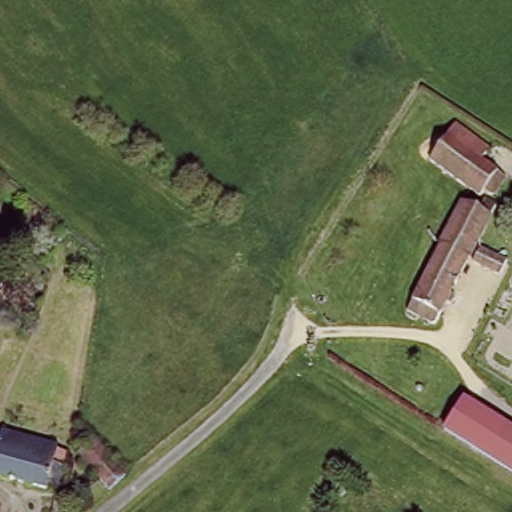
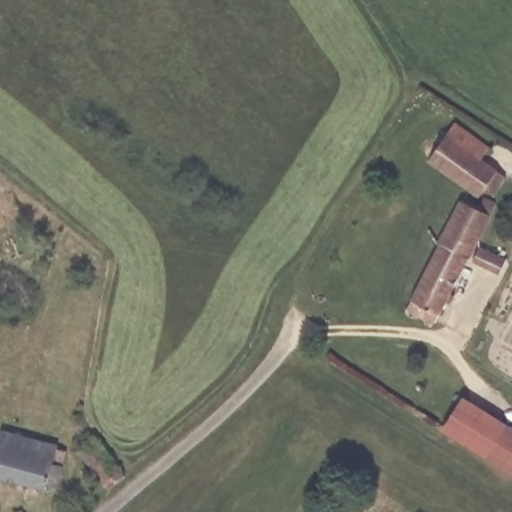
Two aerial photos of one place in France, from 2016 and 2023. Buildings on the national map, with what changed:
unchanged [(452,124),(486,150),(478,159),(501,177),(486,196),(481,192),(475,197),(426,158),(452,124)]
unchanged [(457,202),(475,211),(480,200),(492,206),(432,325),(402,310),(457,202)]
unchanged [(476,249),(501,261),(495,275),(470,261),(476,249)]
unchanged [(464,400),(512,429),(512,472),(445,429),(464,400)]
unchanged [(50,460),(60,463),(48,495),(38,492),(36,498),(0,485),(0,437),(52,455),(50,460)]
unchanged [(95,440),(129,477),(112,491),(79,453),(95,440)]

